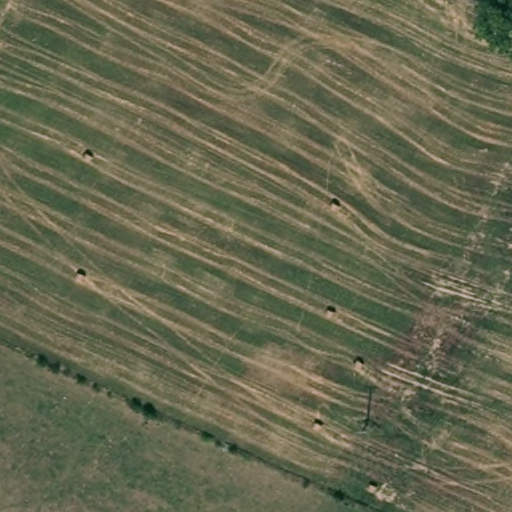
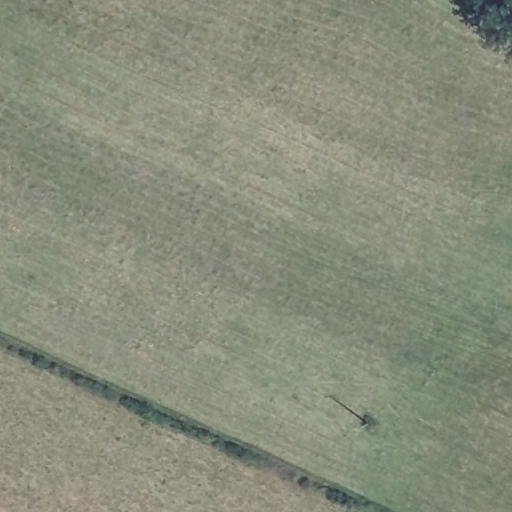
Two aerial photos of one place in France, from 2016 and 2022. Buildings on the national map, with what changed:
[]

